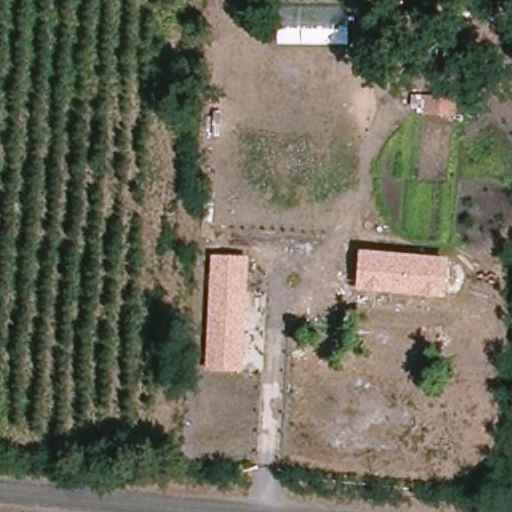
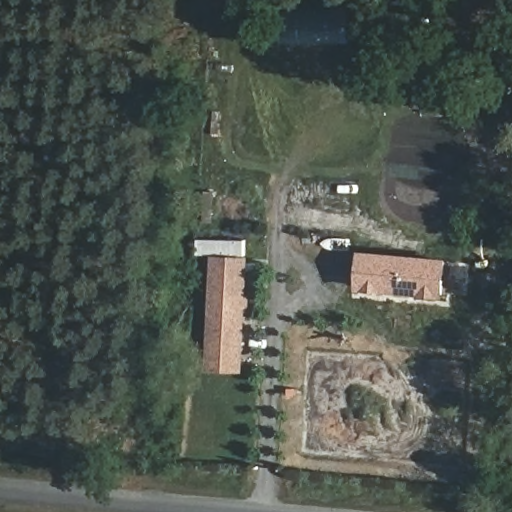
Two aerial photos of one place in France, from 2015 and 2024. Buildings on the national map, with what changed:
unchanged [(347,43),(277,45),(276,7),(347,6),(347,43)]
unchanged [(362,251),(442,263),(437,296),(357,283),(362,251)]
unchanged [(251,295),(251,310),(246,310),(243,372),(205,371),(211,255),(249,257),(247,294),(251,295)]

